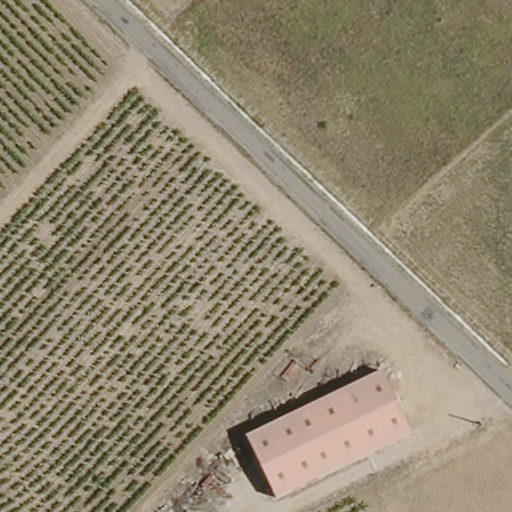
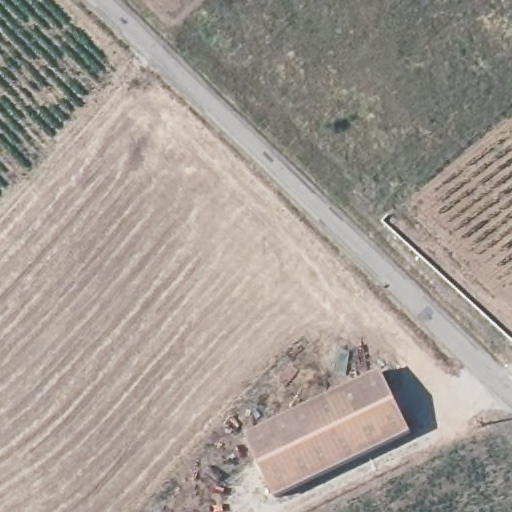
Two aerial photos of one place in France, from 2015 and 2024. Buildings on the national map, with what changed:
unchanged [(411,430),(277,497),(247,436),(380,370),(411,430)]

